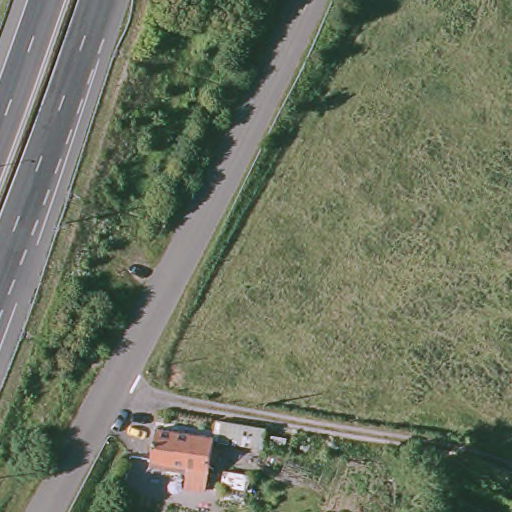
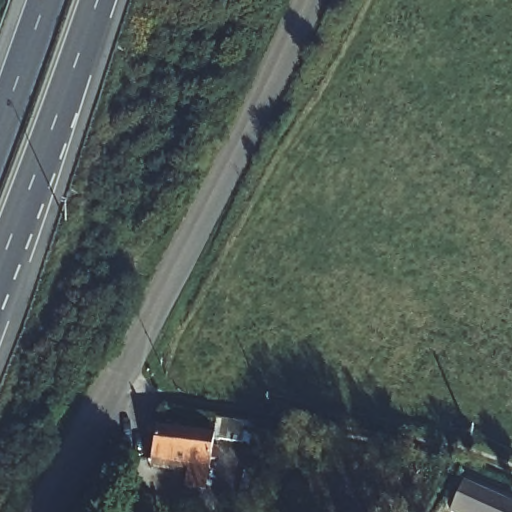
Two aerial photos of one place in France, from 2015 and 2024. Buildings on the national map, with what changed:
unchanged [(218,421),(270,428),(265,450),(215,438),(218,421)]
unchanged [(206,480),(204,495),(182,491),(186,465),(152,460),(159,427),(215,438),(206,480)]
unchanged [(290,438),(289,448),(273,446),(274,437),(290,438)]
demolished [(458,484),(462,467),(512,487),(512,506),(458,484)]
unchanged [(229,471),(252,475),(249,488),(226,484),(229,471)]
new [(464,485),(512,507),(512,512),(452,512),(464,485)]

